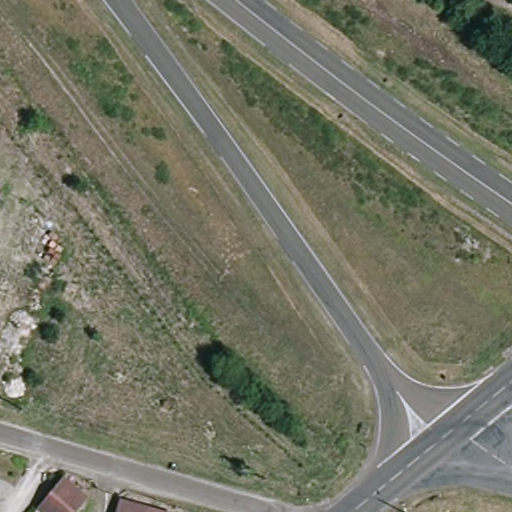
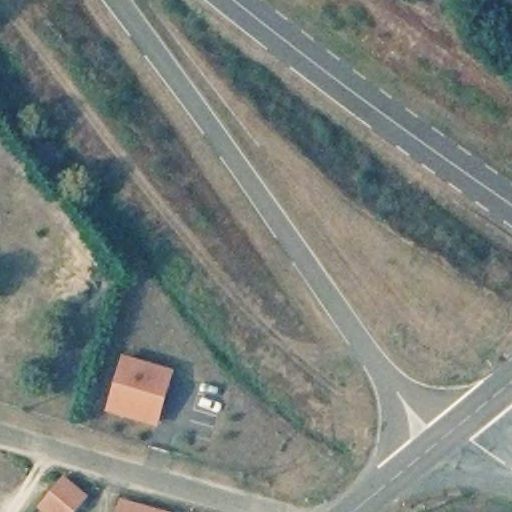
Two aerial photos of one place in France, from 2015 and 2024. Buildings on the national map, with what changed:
new [(174,368),(158,426),(106,412),(122,353),(174,368)]
unchanged [(72,512),(47,512),(39,505),(61,478),(84,497),(72,512)]
unchanged [(120,501),(136,505),(160,512),(117,512),(120,501)]

